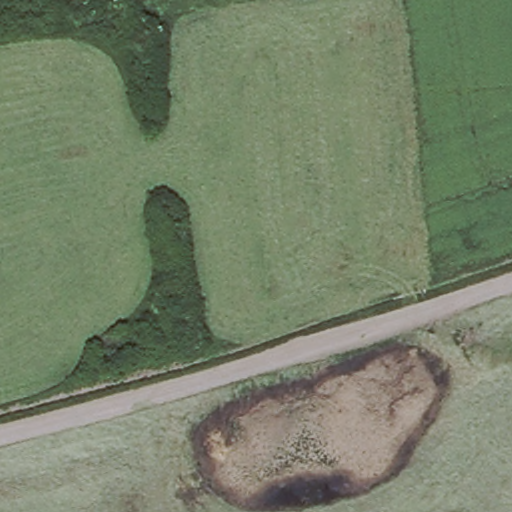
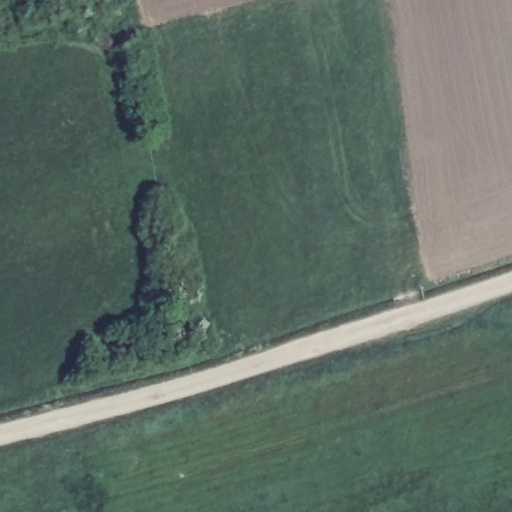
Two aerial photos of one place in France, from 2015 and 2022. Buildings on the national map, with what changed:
unchanged [(124,329),(132,355),(95,367),(89,336),(124,329)]

